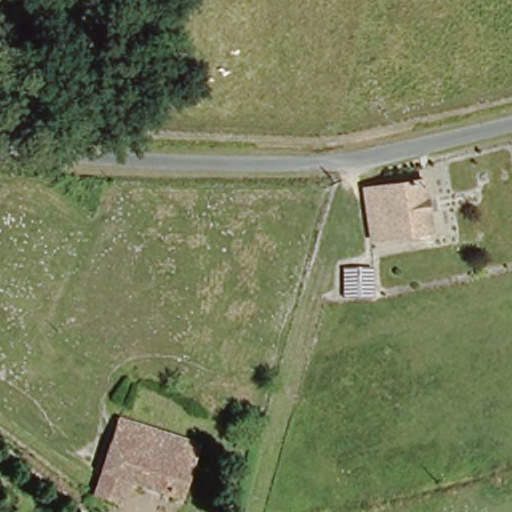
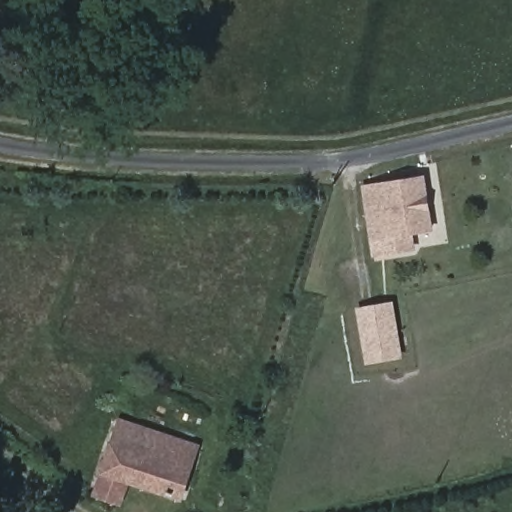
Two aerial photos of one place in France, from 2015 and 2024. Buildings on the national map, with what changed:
unchanged [(362,184),(425,175),(434,224),(372,233),(362,184)]
new [(409,227),(413,246),(376,252),(372,233),(409,227)]
unchanged [(342,297),(343,270),(374,269),(374,299),(342,297)]
new [(355,308),(393,301),(403,359),(365,366),(355,308)]
unchanged [(117,415),(144,424),(136,451),(189,464),(179,498),(98,472),(117,415)]
unchanged [(136,451),(144,424),(195,442),(189,464),(136,451)]

